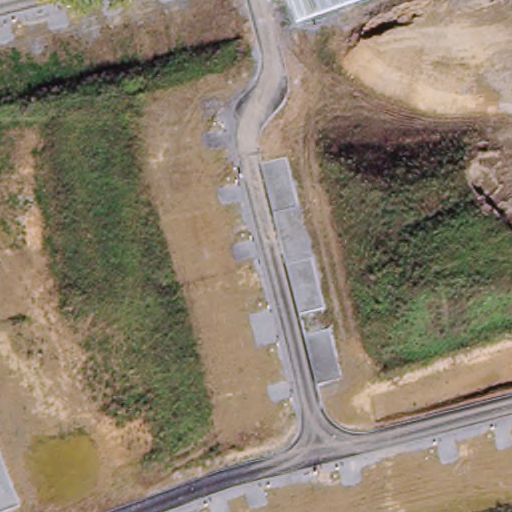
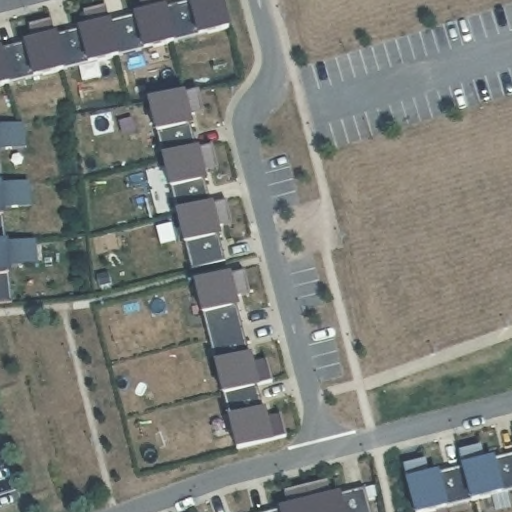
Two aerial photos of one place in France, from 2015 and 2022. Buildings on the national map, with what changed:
new [(1,46),(32,39),(27,25),(50,19),(53,33),(76,28),(85,25),(82,11),(104,6),(106,21),(109,20),(132,14),(142,11),(139,0),(162,0),(163,5),(183,0),(223,0),(230,30),(196,40),(194,31),(173,37),(175,44),(143,53),(140,45),(118,50),(120,57),(87,66),(84,58),(64,64),(66,71),(32,81),(30,73),(8,79),(10,86),(0,89),(0,47),(1,46)]
new [(202,111),(189,113),(192,124),(189,125),(194,146),(197,145),(210,144),(217,166),(204,167),(207,179),(204,180),(209,203),(212,202),(224,201),(230,223),(219,224),(221,235),(218,237),(225,263),(191,271),(183,246),(174,213),(160,158),(146,103),(196,91),(202,111)]
new [(26,145),(0,145),(0,125),(23,122),(26,145)]
new [(1,183),(29,182),(32,204),(3,205),(4,220),(7,242),(35,238),(37,262),(9,263),(10,277),(12,303),(0,304),(0,174),(1,183)]
new [(249,293),(235,294),(238,307),(249,354),(252,354),(253,361),(265,360),(272,384),(258,386),(263,409),(265,409),(267,414),(279,413),(285,436),(273,438),(274,443),(236,454),(192,284),(244,272),(249,293)]
new [(503,496),(470,505),(467,496),(445,503),(447,511),(441,512),(412,512),(404,479),(402,466),(427,460),(429,471),(459,464),(457,451),(483,445),(486,457),(512,452),(512,484),(501,488),(503,496)]
new [(371,512),(266,512),(278,508),(287,506),(284,493),(328,481),(331,495),(339,492),(364,489),(371,512)]

